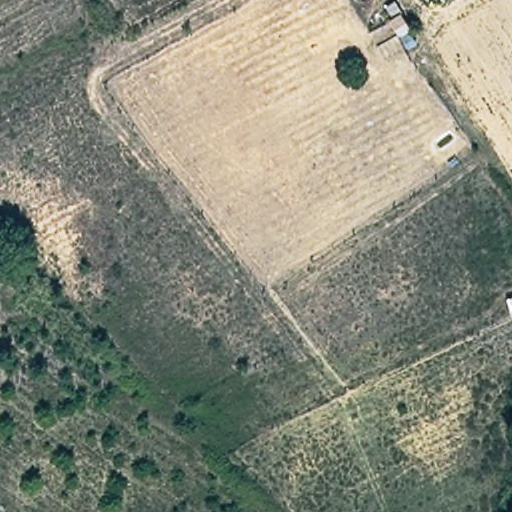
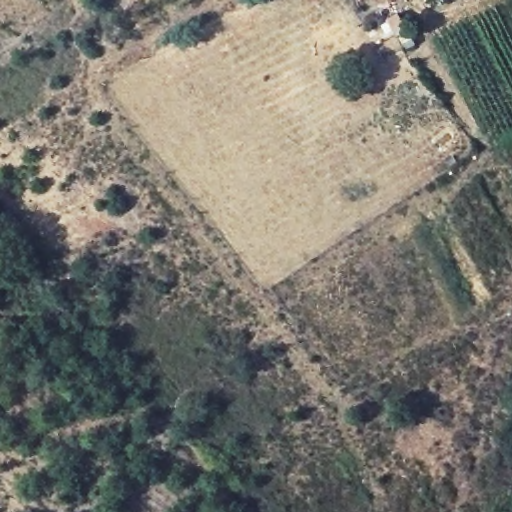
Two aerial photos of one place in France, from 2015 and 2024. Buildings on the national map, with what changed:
unchanged [(395,41),(383,21),(397,12),(407,34),(395,41)]

